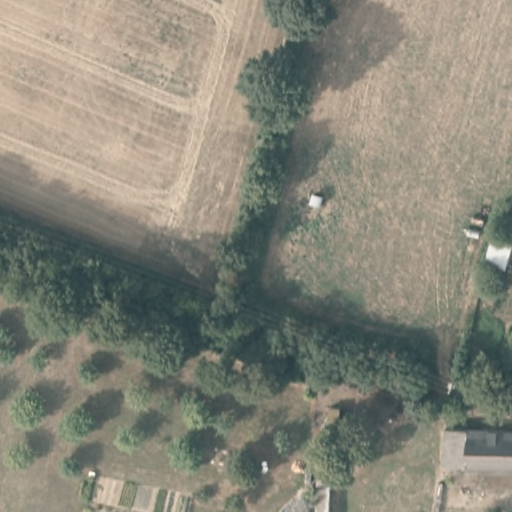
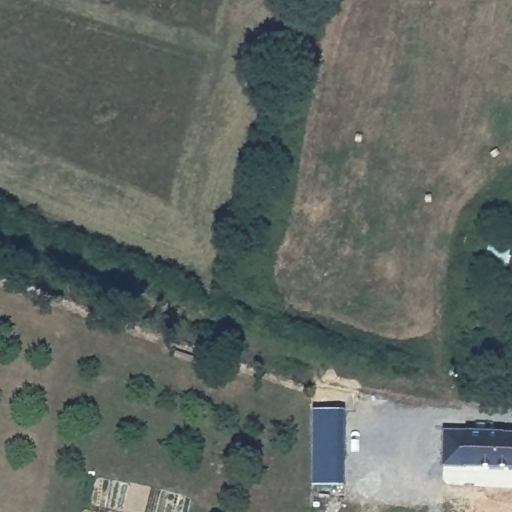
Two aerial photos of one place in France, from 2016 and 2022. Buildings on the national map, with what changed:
unchanged [(512,230),(512,253),(507,270),(483,262),(494,225),(512,230)]
new [(313,409),(346,409),(345,484),(313,484),(313,409)]
unchanged [(480,440),(480,430),(512,429),(512,465),(480,465),(480,440)]
unchanged [(447,466),(446,432),(480,430),(480,440),(480,465),(447,466)]

